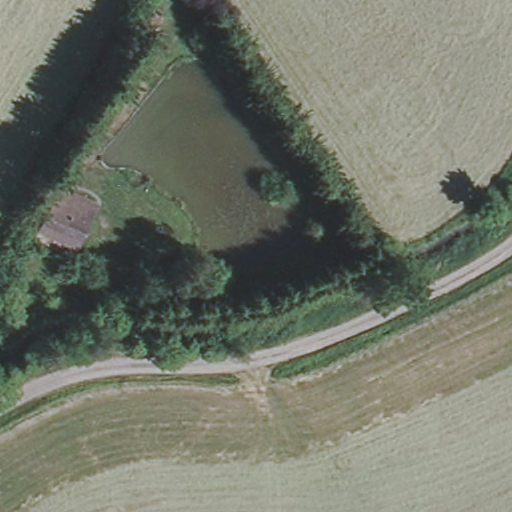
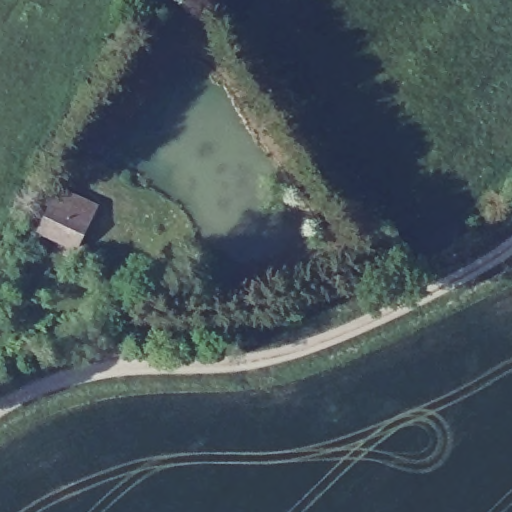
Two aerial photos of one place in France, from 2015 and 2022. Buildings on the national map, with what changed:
unchanged [(35,233),(51,196),(57,181),(92,194),(86,209),(71,248),(35,233)]

